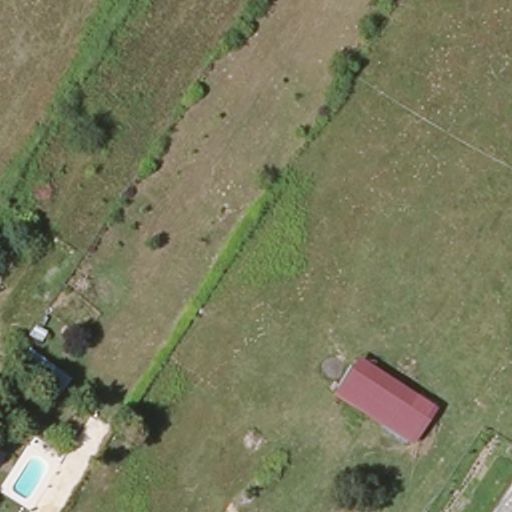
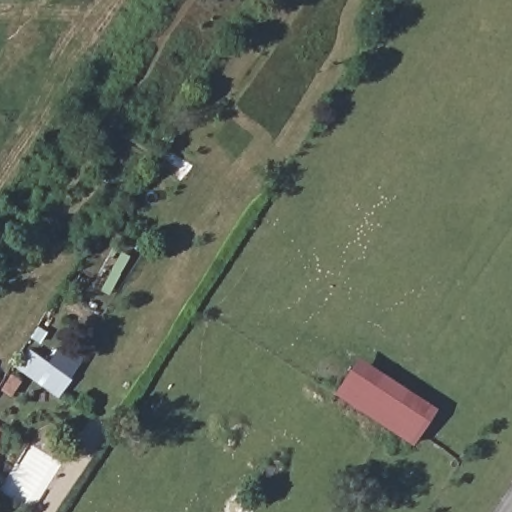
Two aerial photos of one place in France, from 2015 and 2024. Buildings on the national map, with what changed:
new [(57,350),(80,365),(59,397),(15,368),(29,348),(49,362),(57,350)]
unchanged [(411,443),(336,393),(358,356),(436,407),(411,443)]

